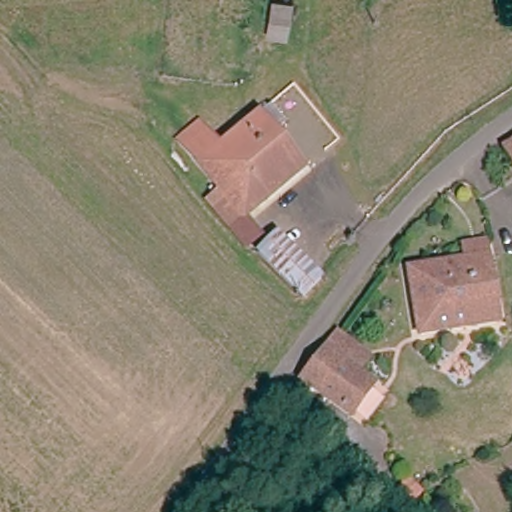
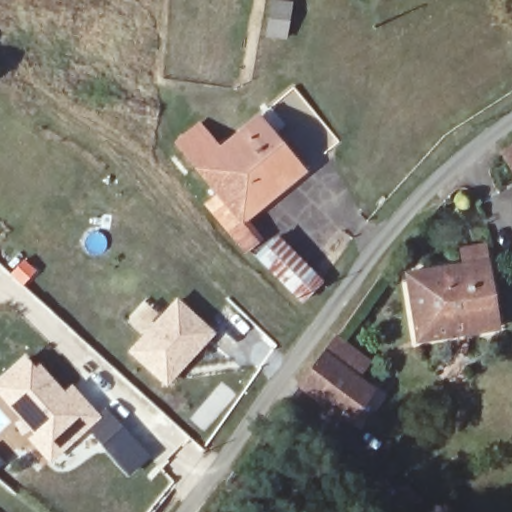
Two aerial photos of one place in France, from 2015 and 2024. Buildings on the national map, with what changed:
unchanged [(285,42),(262,38),(268,0),(279,0),(290,1),(285,42)]
unchanged [(219,145),(259,115),(272,105),(286,122),(274,132),(307,170),(244,222),(178,141),(202,123),(219,145)]
unchanged [(244,222),(253,233),(238,246),(162,153),(178,141),(244,222)]
unchanged [(512,143),(512,166),(501,149),(512,143)]
unchanged [(326,279),(308,293),(305,295),(264,252),(283,234),(322,275),(326,279)]
unchanged [(500,325),(427,341),(413,276),(487,260),(500,325)]
new [(177,301),(212,334),(167,383),(132,351),(177,301)]
unchanged [(351,350),(363,360),(351,377),(373,392),(353,419),(350,423),(297,387),(335,339),(351,350)]
new [(0,385),(27,361),(37,372),(41,369),(66,397),(70,393),(77,400),(80,397),(98,417),(108,408),(124,427),(104,446),(88,428),(52,460),(33,440),(39,435),(19,413),(0,391),(0,385)]
new [(124,427),(151,457),(131,475),(104,446),(124,427)]
unchanged [(406,511),(405,511),(394,499),(407,485),(417,496),(406,511)]

